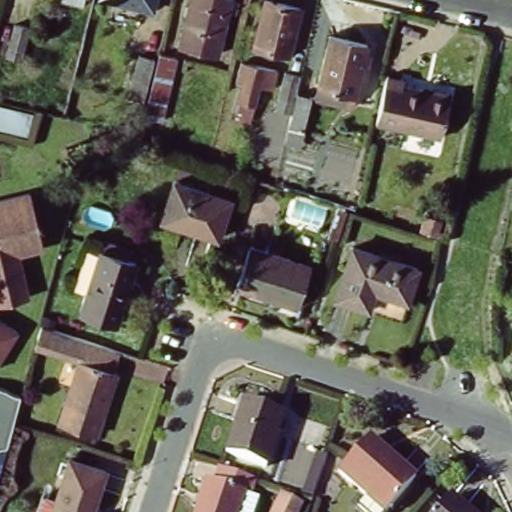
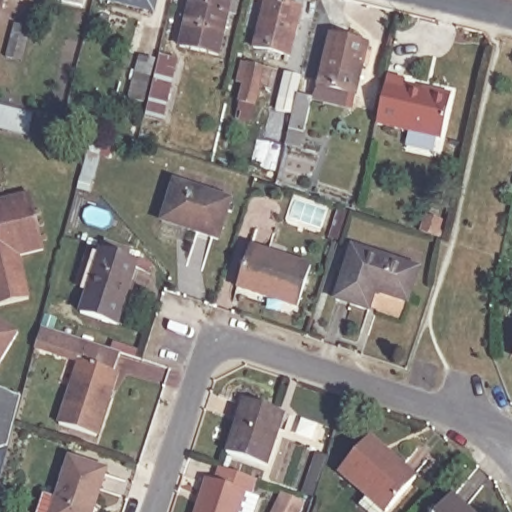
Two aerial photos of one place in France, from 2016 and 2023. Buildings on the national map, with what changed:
unchanged [(78,7),(57,1),(57,0),(80,0),(78,7)]
unchanged [(148,17),(96,3),(97,0),(153,0),(148,17)]
unchanged [(226,5),(234,7),(231,20),(223,18),(213,60),(175,51),(187,0),(218,0),(227,2),(226,5)]
unchanged [(290,61),(253,53),(265,5),(301,14),(290,61)]
unchanged [(6,58),(9,49),(15,25),(30,28),(24,53),(22,62),(6,58)]
unchanged [(315,109),(318,97),(330,47),(367,55),(366,57),(363,74),(355,106),(353,118),(315,109)]
unchanged [(163,122),(145,118),(160,55),(178,59),(163,122)]
unchanged [(144,102),(129,98),(139,56),(154,60),(144,102)]
unchanged [(273,100),(259,97),(251,132),(236,129),(243,95),(236,93),(241,72),(277,81),(273,100)]
unchanged [(291,124),(276,120),(285,83),(300,87),(291,124)]
unchanged [(447,148),(381,134),(392,86),(409,90),(408,96),(434,102),(434,100),(457,105),(447,148)]
unchanged [(304,142),(289,139),(297,104),(312,108),(304,142)]
unchanged [(0,130),(0,114),(30,122),(27,137),(0,130)]
unchanged [(218,244),(189,235),(188,235),(163,227),(163,223),(174,188),(231,206),(218,244)]
unchanged [(25,305),(26,311),(17,313),(15,307),(0,311),(0,207),(26,201),(39,256),(14,262),(25,305)]
unchanged [(338,240),(330,238),(339,210),(347,213),(338,240)]
unchanged [(439,231),(444,233),(442,239),(422,232),(427,217),(442,222),(439,231)]
unchanged [(117,329),(81,318),(88,295),(100,256),(103,247),(131,255),(128,265),(137,268),(117,329)]
unchanged [(298,307),(238,287),(251,247),(311,267),(298,307)]
unchanged [(403,307),(370,297),(364,315),(331,304),(348,253),(374,261),(396,268),(414,274),(403,307)]
unchanged [(0,353),(0,331),(9,337),(0,353)]
unchanged [(109,376),(112,377),(91,441),(54,429),(75,366),(30,352),(37,331),(116,357),(109,376)]
unchanged [(0,395),(20,400),(3,455),(0,456),(0,395)]
unchanged [(262,466),(222,453),(239,401),(279,414),(262,466)]
unchanged [(386,512),(365,512),(359,506),(368,496),(339,471),(369,438),(416,479),(386,512)]
unchanged [(0,456),(3,456),(0,468),(0,456)]
unchanged [(35,512),(38,503),(51,507),(64,464),(100,475),(88,512),(35,512)]
unchanged [(216,482),(221,467),(256,479),(251,493),(251,494),(244,492),(238,512),(197,512),(208,479),(216,482)]
unchanged [(297,512),(275,512),(283,494),(301,503),(297,512)]
unchanged [(436,512),(451,496),(469,512),(436,512)]

